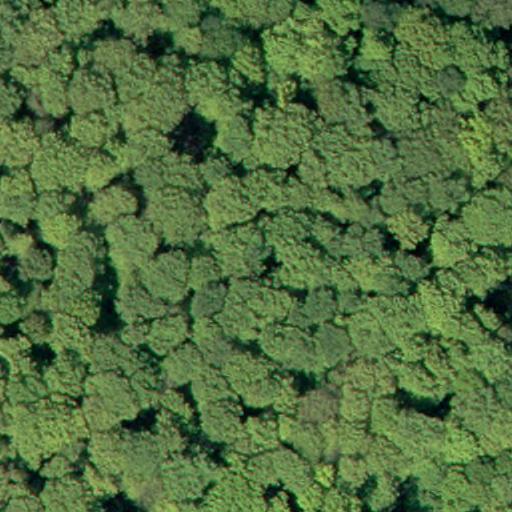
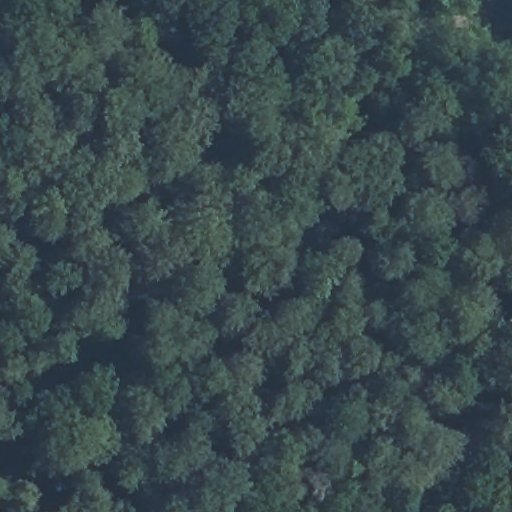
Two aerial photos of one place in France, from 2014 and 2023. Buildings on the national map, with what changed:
[]

